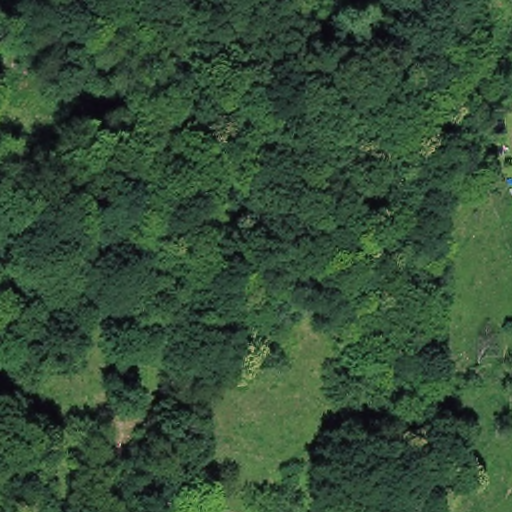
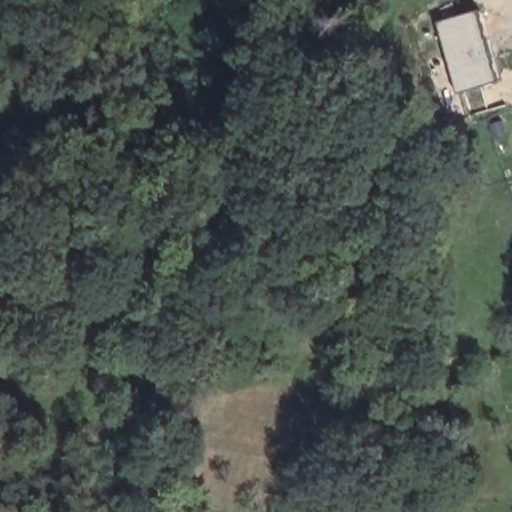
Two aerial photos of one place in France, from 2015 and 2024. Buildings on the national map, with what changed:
new [(479,11),(501,85),(453,100),(434,23),(479,11)]

